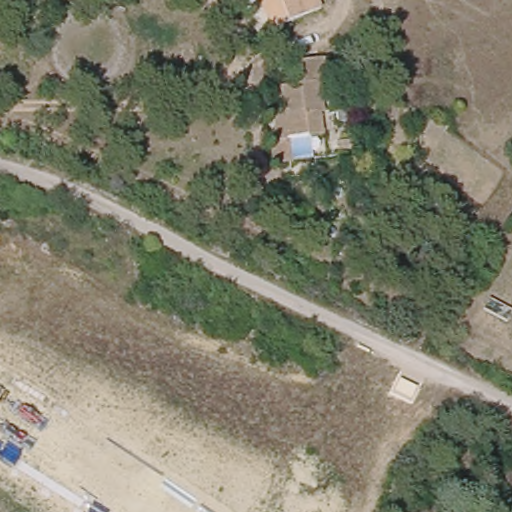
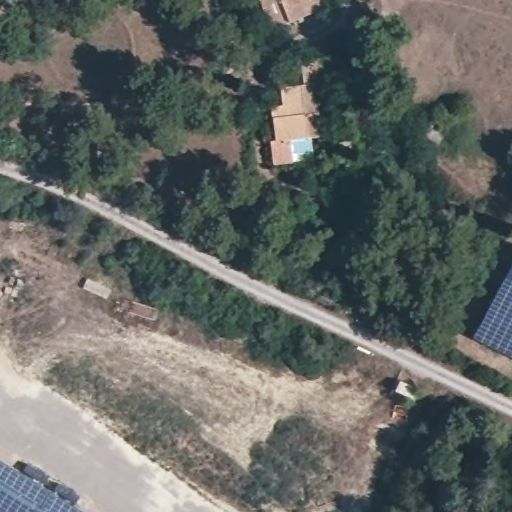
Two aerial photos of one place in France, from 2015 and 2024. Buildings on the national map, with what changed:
unchanged [(321,15),(269,35),(255,0),(315,0),(321,15)]
unchanged [(272,162),(270,140),(274,140),(271,103),(282,101),(281,85),(303,81),(301,60),(324,58),(327,82),(321,82),(326,110),(319,111),(324,134),(289,138),(291,159),(272,162)]
unchanged [(373,182),(374,177),(381,168),(396,172),(389,190),(373,182)]
new [(472,338),(512,261),(512,359),(472,338)]
unchanged [(404,376),(431,386),(424,405),(398,395),(404,376)]
new [(0,512),(0,459),(85,512),(0,512)]

